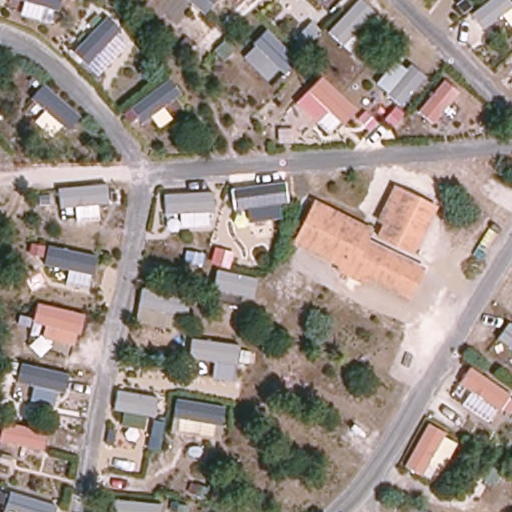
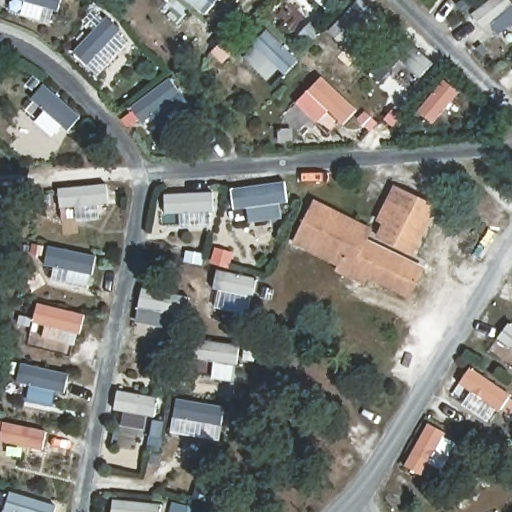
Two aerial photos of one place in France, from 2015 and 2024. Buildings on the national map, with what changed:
unchanged [(415,251),(377,232),(378,231),(402,186),(439,204),(415,251)]
unchanged [(409,292),(295,239),(315,200),(371,227),(366,239),(421,265),(409,292)]

